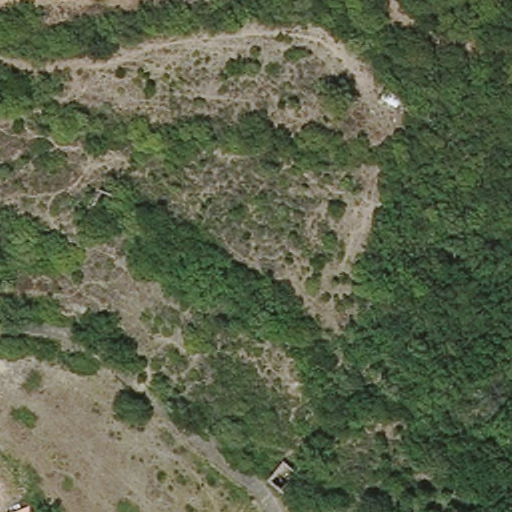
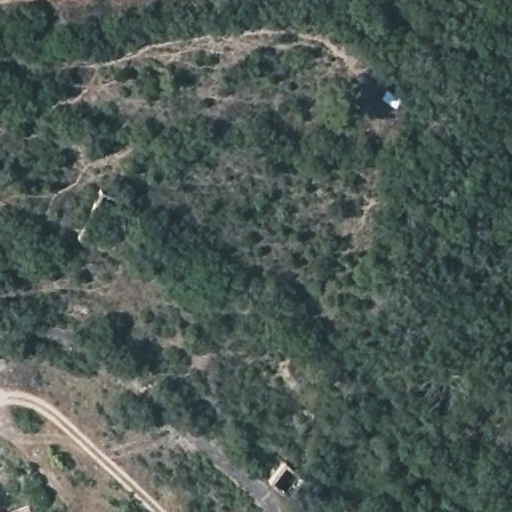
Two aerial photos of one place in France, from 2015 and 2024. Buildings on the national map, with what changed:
unchanged [(34,512),(11,512),(32,506),(34,512)]

